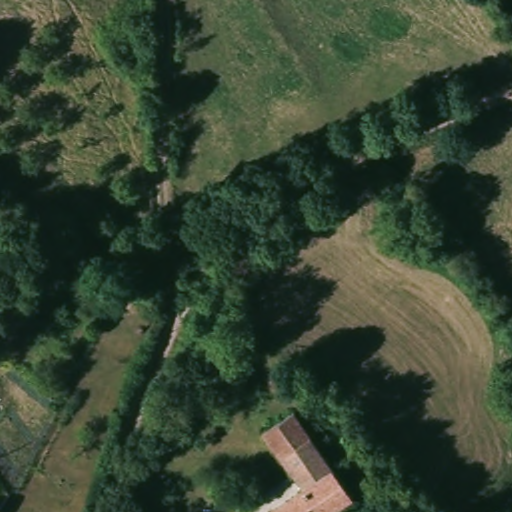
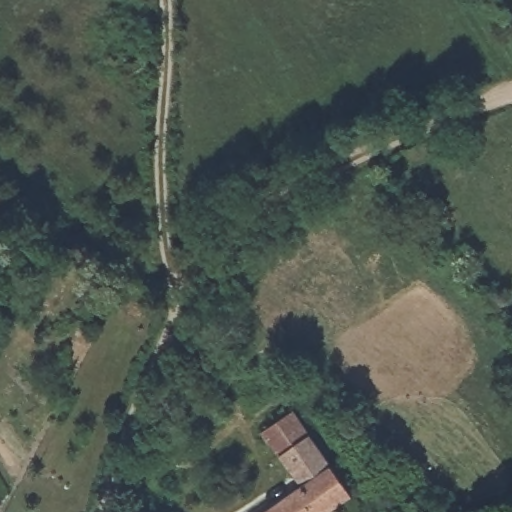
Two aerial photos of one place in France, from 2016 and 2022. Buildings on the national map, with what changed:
unchanged [(296,415),(298,419),(300,422),(315,444),(317,448),(320,452),(321,453),(324,458),(328,464),(329,466),(340,481),(346,491),(351,498),(330,512),(269,512),(303,489),(302,488),(291,472),(275,450),(270,444),(262,432),(265,429),(287,415),(293,412),(295,414),(296,415)]

